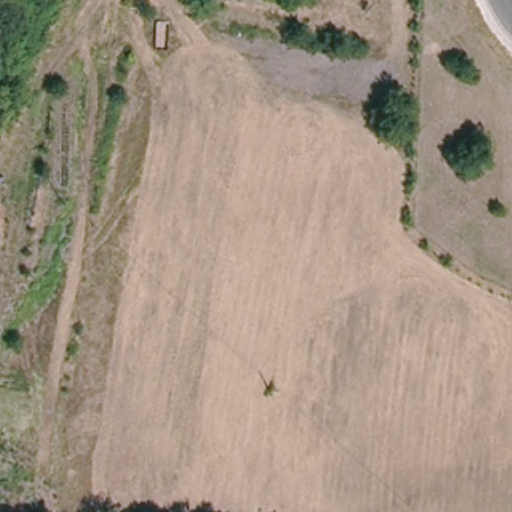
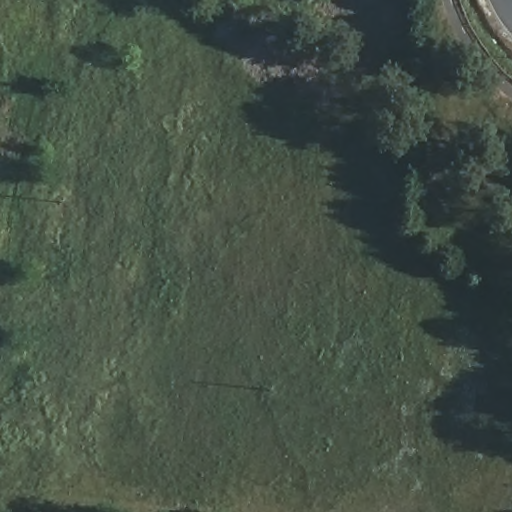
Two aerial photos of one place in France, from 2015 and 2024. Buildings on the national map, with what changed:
[]

